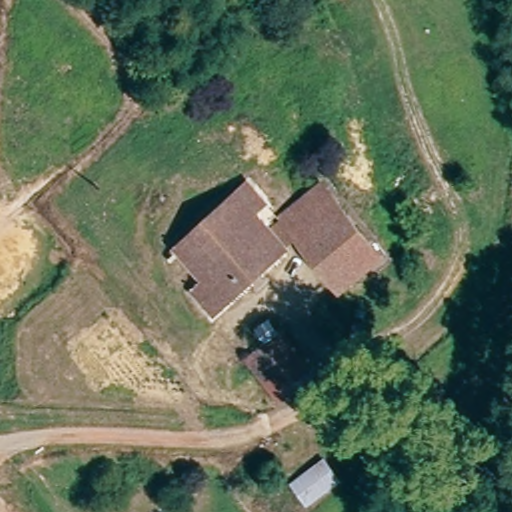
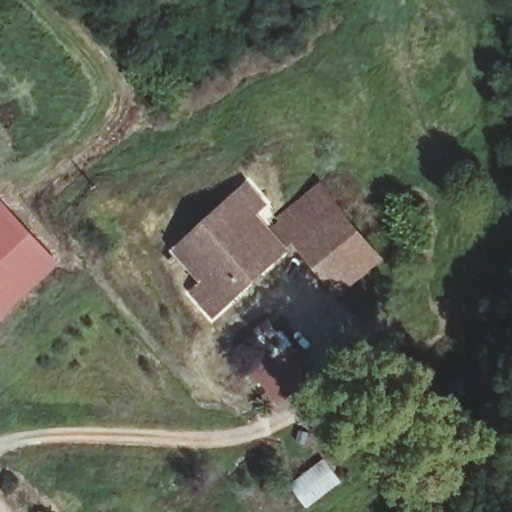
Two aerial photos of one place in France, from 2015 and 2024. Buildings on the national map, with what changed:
unchanged [(339,177),(399,248),(356,282),(348,273),(317,238),(295,214),(322,191),(339,177)]
new [(62,263),(0,321),(0,198),(1,198),(62,263)]
unchanged [(269,229),(280,219),(302,243),(290,252),(291,254),(219,317),(215,320),(196,297),(206,288),(179,253),(242,199),(269,229)]
unchanged [(293,399),(242,348),(274,319),(322,376),(293,399)]

